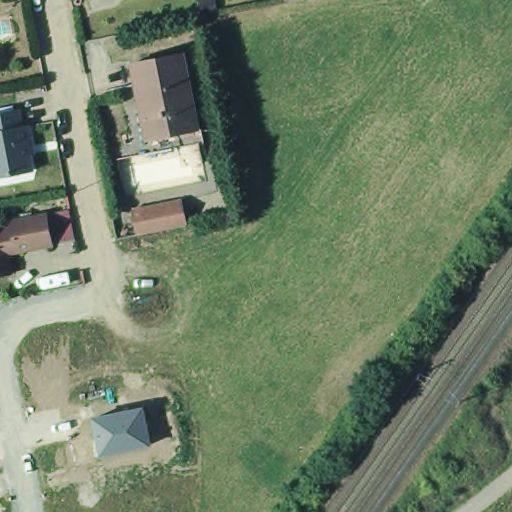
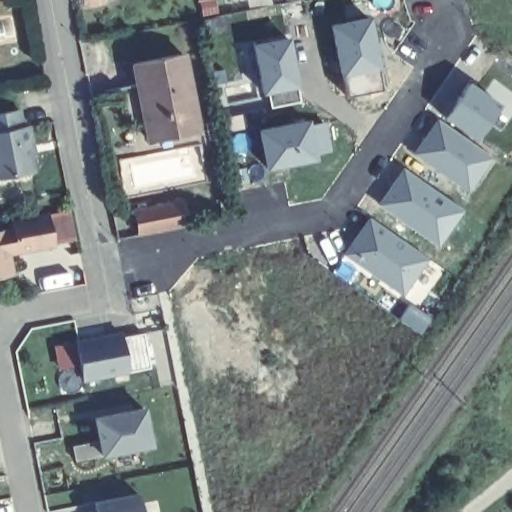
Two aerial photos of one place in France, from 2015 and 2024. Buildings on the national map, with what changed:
new [(370,20),(381,89),(345,95),(327,27),(370,20)]
new [(287,36),(298,86),(262,94),(251,43),(287,36)]
unchanged [(202,125),(152,134),(137,58),(187,49),(202,125)]
new [(500,102),(475,137),(445,116),(466,81),(500,102)]
unchanged [(0,172),(0,114),(21,111),(32,169),(0,172)]
new [(311,119),(319,160),(265,171),(256,131),(311,119)]
new [(493,157),(470,193),(412,155),(437,120),(493,157)]
new [(440,247),(377,204),(403,167),(465,211),(440,247)]
unchanged [(182,209),(188,234),(138,240),(135,212),(182,209)]
unchanged [(51,210),(56,239),(21,246),(21,243),(11,245),(15,267),(0,270),(0,226),(16,223),(15,217),(51,210)]
new [(427,259),(405,295),(343,255),(370,219),(427,259)]
new [(432,316),(420,333),(398,320),(411,305),(432,316)]
new [(130,372),(82,381),(75,339),(122,332),(123,337),(143,333),(150,366),(130,372)]
unchanged [(145,407),(151,446),(100,456),(92,417),(145,407)]
unchanged [(141,512),(95,512),(93,502),(137,493),(141,512)]

